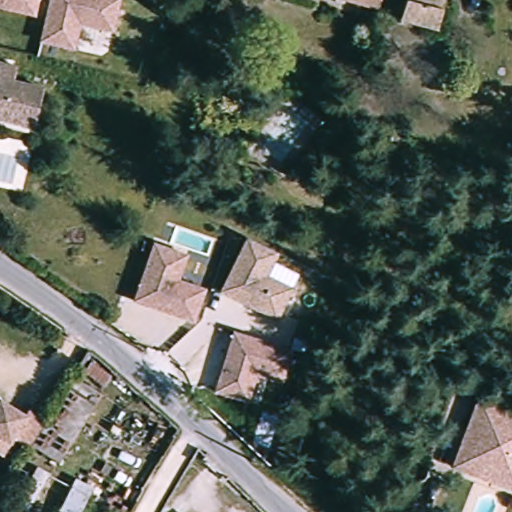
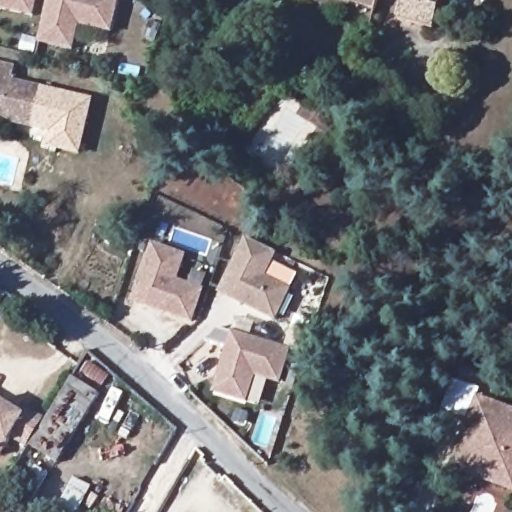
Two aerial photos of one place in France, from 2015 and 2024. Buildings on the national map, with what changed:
unchanged [(30,15),(0,8),(0,0),(33,0),(30,15)]
unchanged [(108,29),(75,22),(70,48),(37,41),(46,0),(114,0),(108,29)]
unchanged [(376,6),(347,0),(377,0),(376,6)]
unchanged [(391,17),(400,19),(405,0),(442,0),(435,29),(408,22),(398,54),(382,49),(391,17)]
unchanged [(0,66),(5,67),(9,71),(10,76),(9,79),(7,89),(39,97),(31,131),(0,124),(0,66)]
new [(93,98),(80,154),(46,147),(49,134),(31,131),(39,97),(7,89),(9,79),(42,87),(93,98)]
unchanged [(276,251),(264,275),(289,287),(275,317),(218,292),(246,236),(276,251)]
unchanged [(136,298),(158,242),(190,255),(180,279),(206,290),(194,321),(165,310),(151,304),(136,298)]
unchanged [(224,334),(283,342),(278,375),(252,372),(248,399),(215,394),(224,334)]
unchanged [(44,415),(69,375),(96,393),(54,462),(26,444),(44,415)]
unchanged [(486,480),(452,467),(478,396),(512,409),(512,489),(486,480)]
unchanged [(0,400),(18,411),(24,403),(44,415),(26,444),(23,450),(5,440),(0,448),(0,400)]

